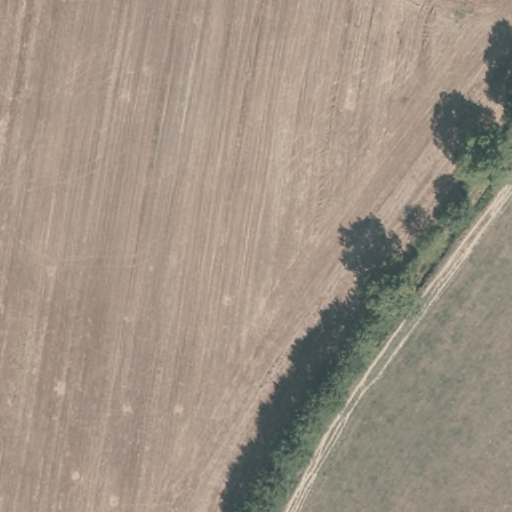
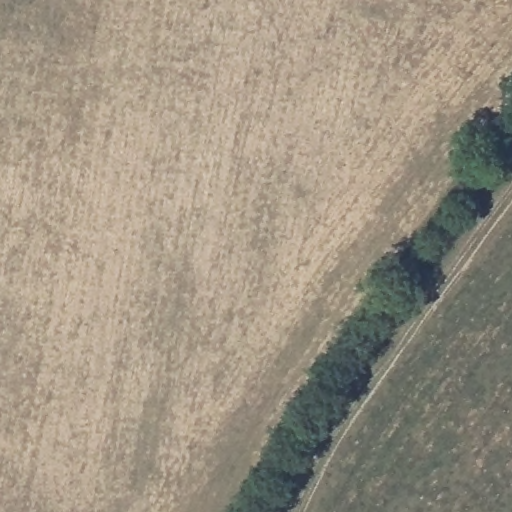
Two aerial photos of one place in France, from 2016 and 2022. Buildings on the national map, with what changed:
[]

